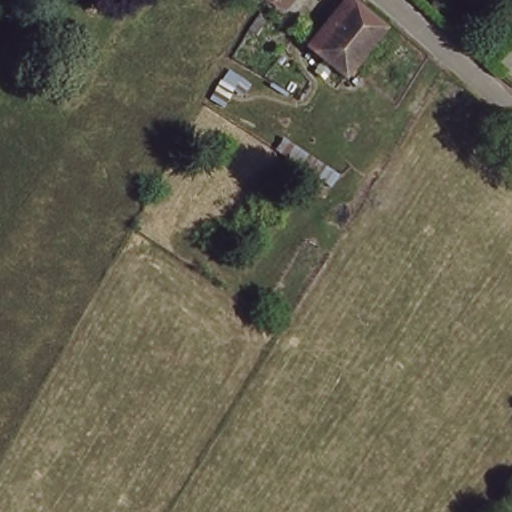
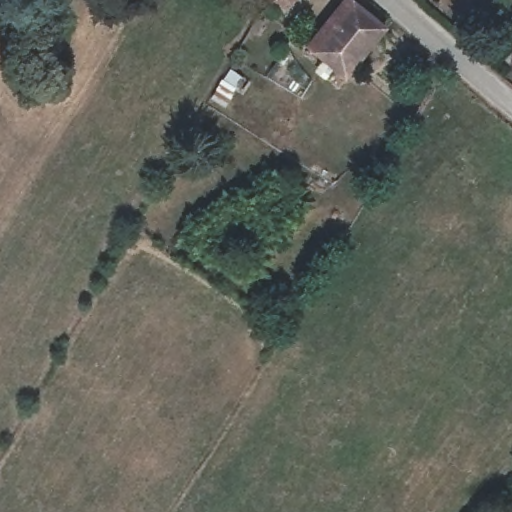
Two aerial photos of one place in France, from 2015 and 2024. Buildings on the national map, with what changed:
unchanged [(285,12),(272,0),(296,0),(285,12)]
unchanged [(385,25),(345,71),(311,43),(347,0),(354,0),(385,25)]

